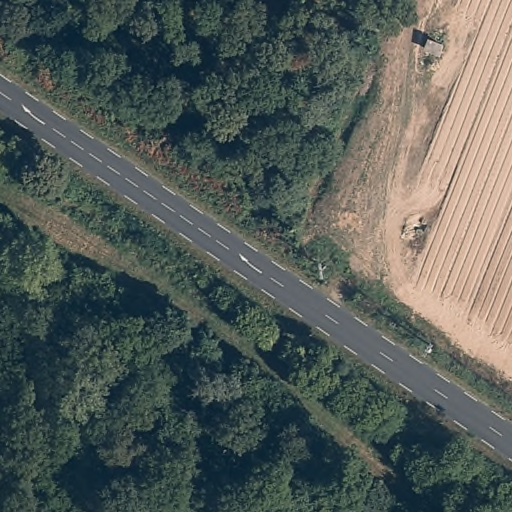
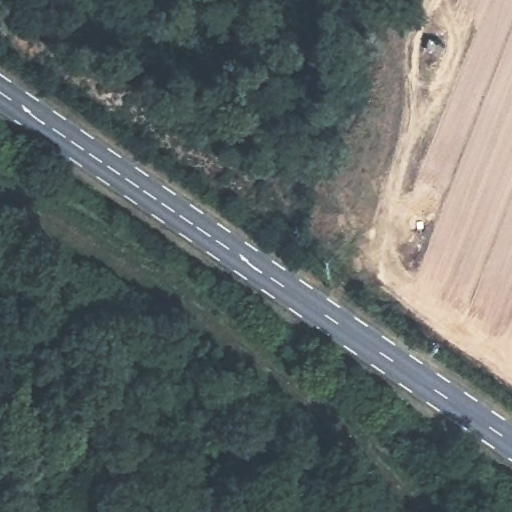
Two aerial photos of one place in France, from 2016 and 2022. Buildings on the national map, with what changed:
unchanged [(296,239),(303,229),(315,235),(307,247),(296,239)]

